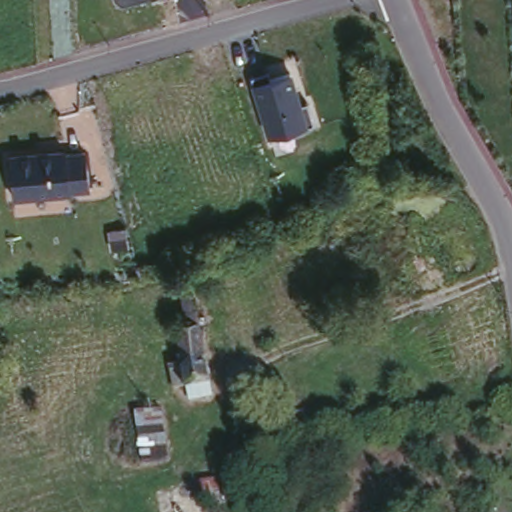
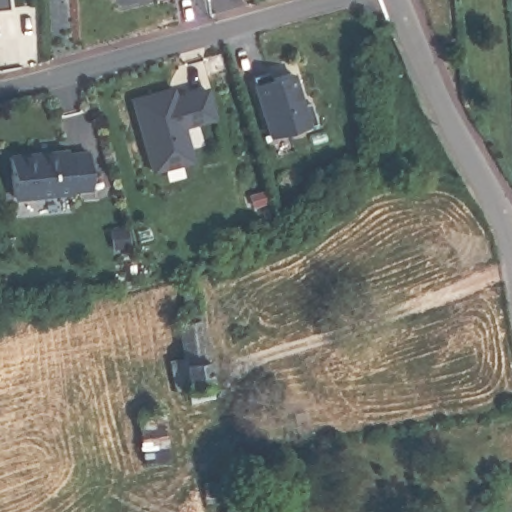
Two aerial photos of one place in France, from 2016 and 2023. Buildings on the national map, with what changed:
new [(0,10),(0,0),(5,0),(6,10),(0,10)]
unchanged [(303,100),(308,99),(314,123),(267,140),(250,82),(292,68),(303,100)]
new [(168,79),(171,91),(203,82),(213,120),(182,125),(192,160),(149,171),(128,91),(168,79)]
unchanged [(92,188),(74,190),(75,193),(16,200),(9,156),(68,148),(69,152),(85,149),(92,188)]
unchanged [(197,299),(215,403),(193,408),(191,396),(179,398),(176,380),(190,378),(184,344),(193,342),(186,301),(197,299)]
unchanged [(173,459),(146,462),(138,411),(169,409),(173,459)]

